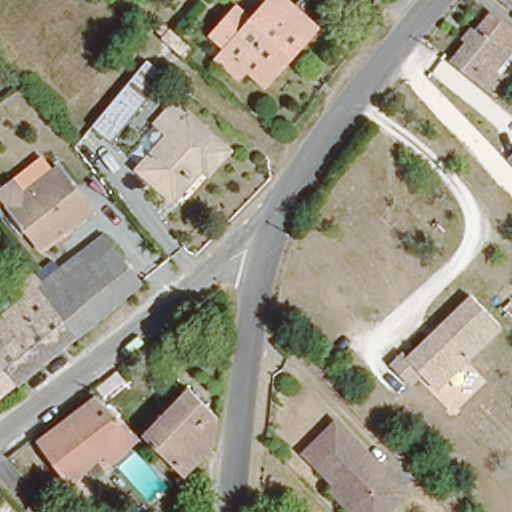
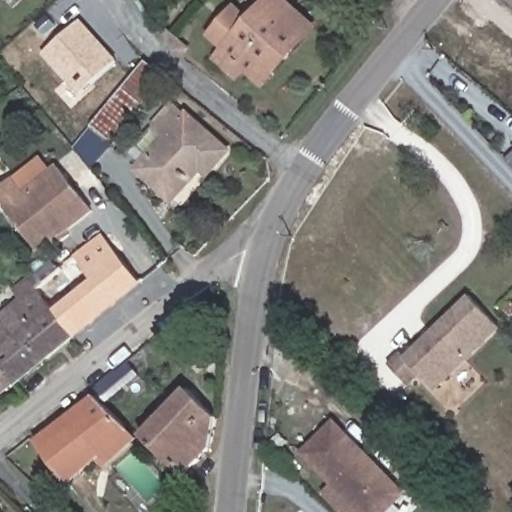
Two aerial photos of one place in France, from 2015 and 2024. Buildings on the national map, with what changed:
unchanged [(239,5),(255,18),(271,0),(290,0),(318,22),(295,49),(271,76),(265,72),(249,60),(243,67),(240,71),(221,56),(226,51),(231,45),(215,31),(239,5)]
unchanged [(506,72),(512,77),(506,84),(507,85),(500,92),(457,58),(481,28),(496,10),(512,22),(512,49),(511,51),(498,66),(506,72)]
new [(117,62),(81,94),(45,53),(82,20),(117,62)]
unchanged [(102,116),(102,115),(134,75),(135,76),(136,76),(146,84),(154,89),(122,130),(102,116)]
unchanged [(172,137),(156,125),(160,121),(177,103),(181,106),(232,147),(212,170),(205,164),(175,196),(145,169),(172,137)]
new [(505,160),(512,153),(512,166),(505,160)]
unchanged [(70,233),(74,237),(59,250),(55,247),(43,259),(0,199),(0,187),(13,177),(25,191),(56,165),(94,213),(70,233)]
unchanged [(76,256),(101,235),(137,276),(112,297),(76,256)]
unchanged [(112,297),(71,332),(31,293),(51,278),(76,256),(112,297)]
unchanged [(18,299),(11,292),(17,286),(30,277),(42,269),(51,278),(31,293),(71,332),(44,355),(4,312),(18,299)]
unchanged [(503,330),(438,392),(425,377),(412,389),(389,363),(400,351),(406,356),(470,295),(503,330)]
unchanged [(14,382),(0,367),(0,315),(4,312),(44,355),(14,382)]
unchanged [(0,393),(0,367),(14,382),(0,393)]
unchanged [(205,437),(184,464),(170,450),(166,454),(141,431),(173,396),(185,383),(216,411),(205,437)]
unchanged [(111,460),(103,451),(71,479),(37,445),(95,397),(120,420),(130,428),(129,429),(137,437),(111,460)]
unchanged [(333,481),(305,452),(331,423),(400,491),(381,512),(364,512),(356,504),(333,481)]

